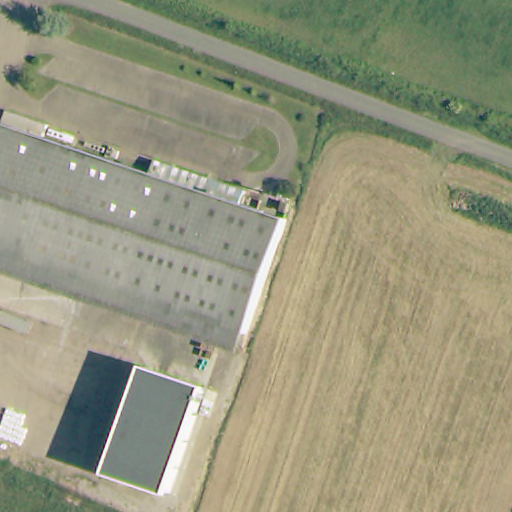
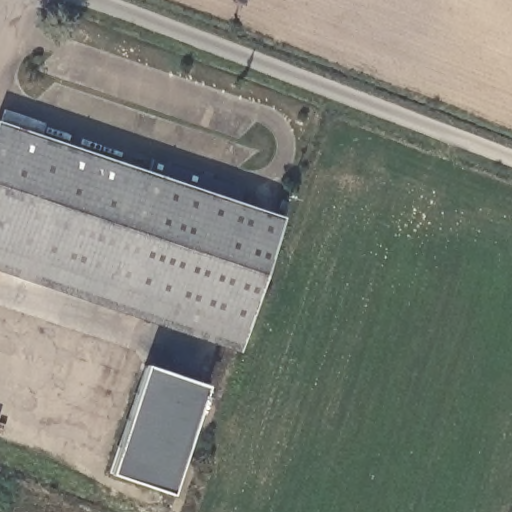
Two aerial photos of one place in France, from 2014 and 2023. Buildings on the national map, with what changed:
unchanged [(139,181),(144,166),(235,197),(230,212),(276,228),(237,347),(0,265),(0,133),(139,181)]
unchanged [(169,497),(107,476),(145,368),(206,388),(169,497)]

